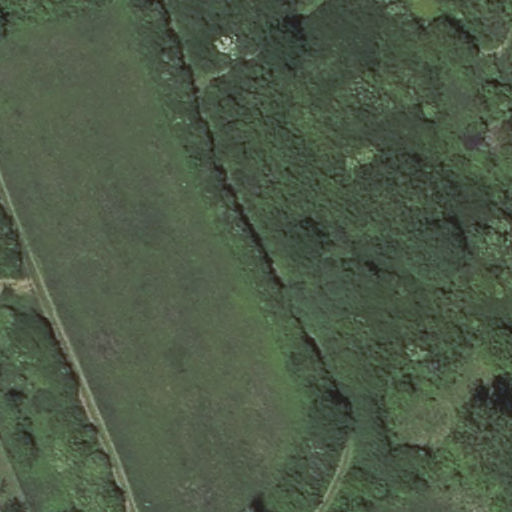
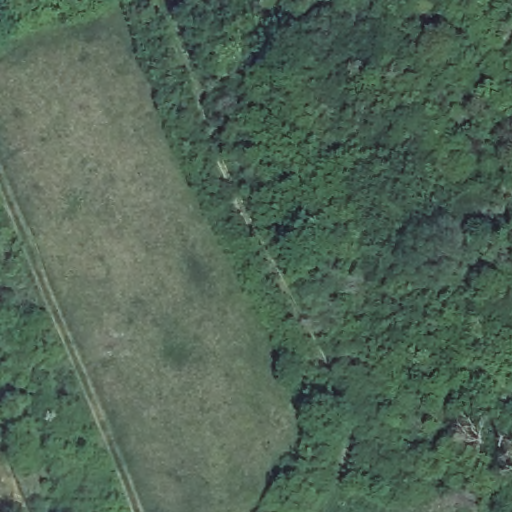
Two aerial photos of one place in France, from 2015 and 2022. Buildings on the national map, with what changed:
unchanged [(479,128),(504,115),(512,136),(512,137),(487,148),(479,128)]

